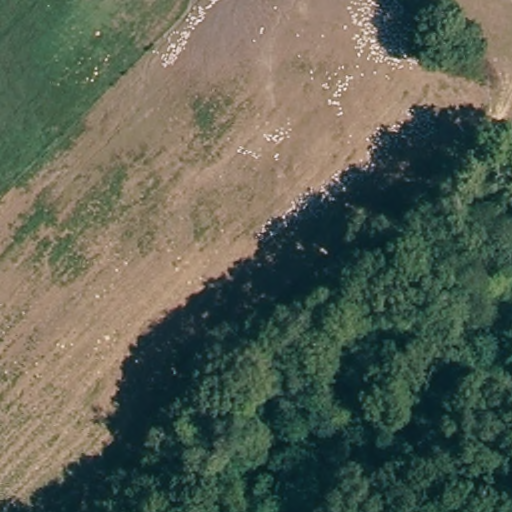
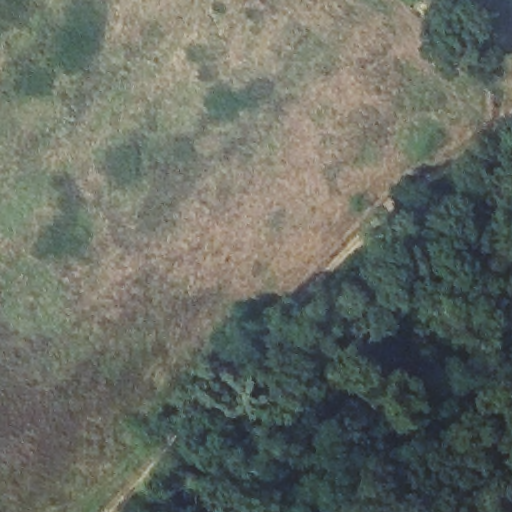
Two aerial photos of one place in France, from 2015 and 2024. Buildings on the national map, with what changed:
[]

